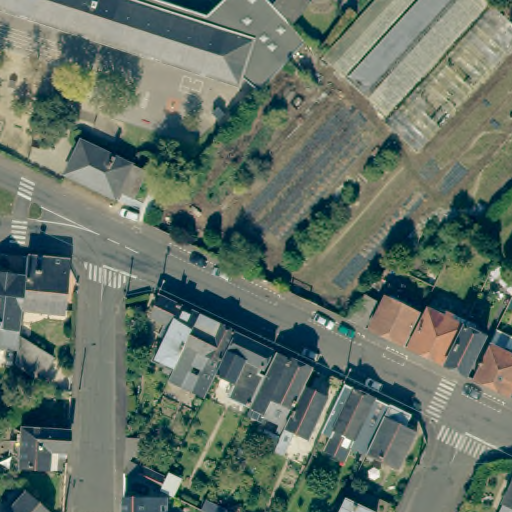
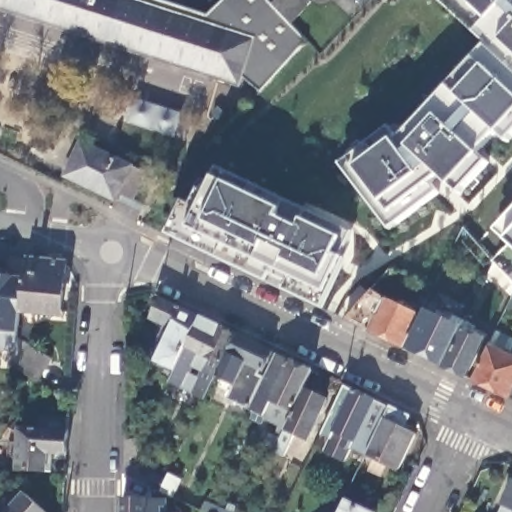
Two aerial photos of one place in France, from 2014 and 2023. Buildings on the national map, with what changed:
unchanged [(207,15),(222,0),(269,0),(272,4),(276,0),(311,0),(313,2),(292,25),(306,39),(294,52),(258,92),(241,77),(238,86),(0,8),(0,0),(163,0),(173,4),(207,15)]
demolished [(408,0),(339,77),(318,57),(370,0),(408,0)]
new [(341,164),(389,127),(399,139),(486,44),(440,0),(512,0),(512,134),(459,192),(440,175),(431,181),(437,192),(390,227),(341,164)]
demolished [(343,80),(415,0),(486,0),(381,114),(343,80)]
unchanged [(60,171),(76,137),(141,167),(129,193),(113,186),(109,194),(60,171)]
new [(167,234),(184,200),(191,204),(199,189),(206,192),(213,177),(218,166),(353,233),(341,257),(345,258),(323,306),(266,280),(167,234)]
new [(491,268),(494,261),(506,273),(496,262),(511,246),(500,235),(512,222),(512,291),(491,268)]
unchanged [(20,298),(22,282),(23,277),(23,276),(25,255),(65,260),(60,310),(19,306),(20,298)]
unchanged [(13,363),(14,350),(0,349),(0,273),(23,276),(23,277),(22,282),(20,298),(19,306),(16,334),(50,357),(35,380),(13,363)]
unchanged [(195,311),(169,365),(152,357),(169,322),(147,312),(156,292),(195,311)]
new [(512,295),(512,299),(510,298),(512,295)]
unchanged [(372,303),(360,328),(340,320),(360,297),(372,303)]
unchanged [(400,347),(365,331),(381,300),(402,310),(406,304),(414,307),(411,313),(415,316),(400,347)]
unchanged [(461,377),(441,367),(403,349),(422,310),(433,316),(435,312),(445,316),(444,320),(459,327),(462,322),(469,326),(467,332),(479,338),(461,377)]
unchanged [(195,311),(231,328),(211,370),(199,395),(163,377),(169,365),(195,311)]
unchanged [(267,346),(258,364),(256,363),(253,368),(260,372),(245,402),(223,392),(229,378),(211,370),(231,328),(267,346)]
unchanged [(468,380),(484,346),(490,332),(511,342),(505,356),(512,359),(512,400),(468,380)]
unchanged [(262,367),(271,347),(284,353),(307,364),(298,382),(274,433),(268,431),(274,420),(260,413),(252,409),(253,407),(245,402),(260,372),(262,367)]
unchanged [(298,382),(320,393),(301,433),(287,427),(273,457),(264,453),(274,433),(298,382)]
unchanged [(393,406),(371,452),(370,455),(355,447),(348,461),(328,452),(334,438),(325,433),(348,385),(393,406)]
unchanged [(413,415),(407,427),(420,432),(403,468),(371,452),(393,406),(413,415)]
unchanged [(2,433),(0,431),(0,417),(9,426),(2,433)]
unchanged [(65,452),(47,451),(46,464),(18,462),(20,422),(66,426),(65,452)]
unchanged [(176,480),(167,497),(156,491),(120,474),(120,471),(122,437),(136,438),(126,459),(124,462),(161,480),(164,474),(176,480)]
unchanged [(492,508),(508,475),(512,477),(512,512),(491,512),(492,508)]
unchanged [(46,512),(4,512),(5,511),(3,510),(22,488),(46,511),(46,512)]
unchanged [(140,500),(162,500),(162,505),(167,507),(173,510),(176,512),(120,512),(120,500),(140,500)]
unchanged [(369,512),(339,512),(344,501),(369,512)]

